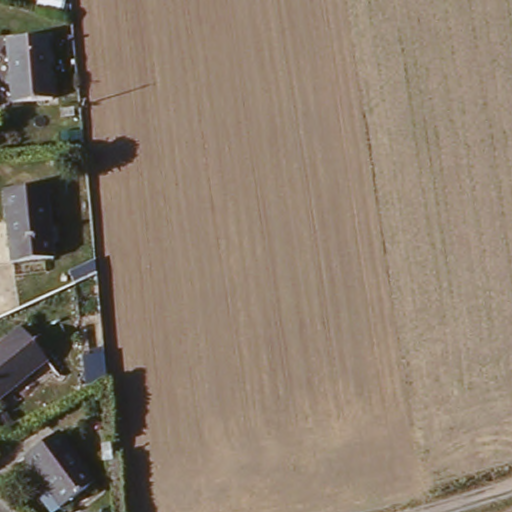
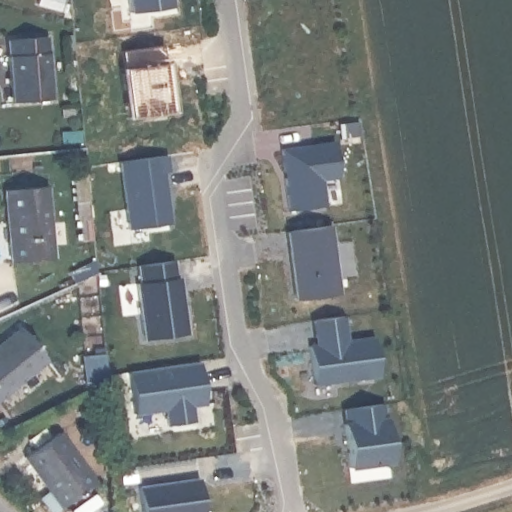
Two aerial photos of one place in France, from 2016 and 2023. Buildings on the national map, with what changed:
unchanged [(38,7),(39,0),(65,0),(63,12),(38,7)]
new [(127,13),(125,0),(169,0),(169,8),(127,13)]
unchanged [(12,69),(10,40),(48,37),(51,67),(12,69)]
unchanged [(54,100),(15,102),(12,69),(51,67),(54,100)]
new [(280,147),(335,139),(338,179),(323,180),(326,207),(288,211),(280,147)]
new [(167,172),(161,174),(168,224),(129,230),(121,162),(163,157),(167,172)]
unchanged [(45,187),(52,261),(12,264),(5,191),(45,187)]
new [(330,224),(339,293),(294,298),(285,230),(330,224)]
new [(176,276),(180,275),(187,334),(144,341),(137,283),(139,282),(137,266),(174,261),(176,276)]
new [(344,316),(347,340),(373,337),(379,376),(314,386),(308,346),(314,345),(311,321),(344,316)]
unchanged [(16,330),(41,361),(0,394),(0,343),(16,330)]
new [(205,405),(192,407),(194,422),(165,427),(162,410),(135,414),(128,371),(199,362),(205,405)]
new [(385,402),(392,463),(350,468),(341,408),(385,402)]
unchanged [(41,498),(50,492),(25,459),(58,436),(94,483),(62,507),(56,512),(51,512),(41,498)]
new [(204,512),(141,512),(137,487),(199,477),(204,512)]

